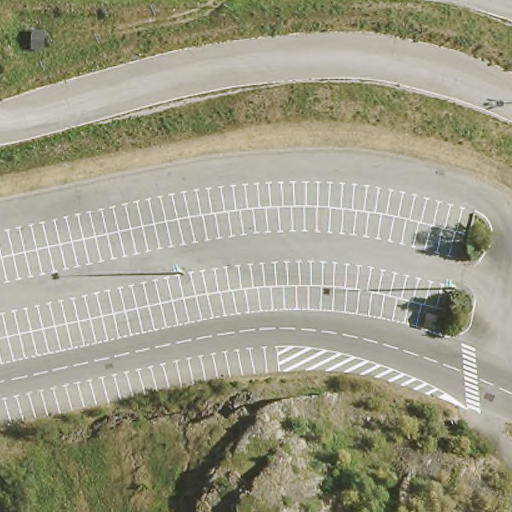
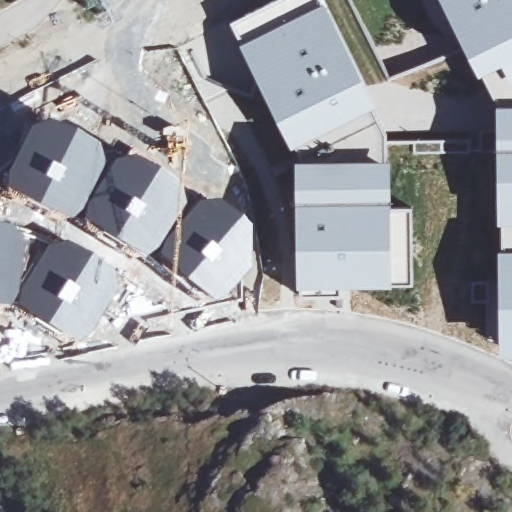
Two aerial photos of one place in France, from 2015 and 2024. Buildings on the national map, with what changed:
new [(325,0),(345,36),(377,105),(290,146),(252,70),(229,20),(270,0),(325,0)]
new [(320,0),(364,96),(466,43),(444,0),(512,0),(512,349),(487,338),(489,281),(411,282),(367,285),(367,272),(340,272),(337,292),(300,293),(300,166),(309,167),(309,150),(300,154),(232,21),(277,0),(320,0)]
new [(27,126),(47,120),(71,129),(52,165),(45,161),(37,176),(44,180),(32,205),(0,187),(0,185),(4,170),(27,126)]
new [(44,180),(37,176),(45,161),(52,165),(71,129),(95,143),(103,163),(72,218),(70,222),(32,205),(44,180)]
new [(103,163),(110,159),(125,155),(129,151),(133,154),(155,167),(170,177),(169,197),(162,235),(141,259),(72,218),(103,163)]
new [(392,156),(392,205),(412,205),(414,284),(345,285),(297,287),(295,157),(392,156)]
new [(172,245),(172,235),(172,230),(175,225),(202,193),(235,216),(207,247),(200,242),(190,256),(174,275),(171,274),(172,245)]
new [(194,259),(190,256),(200,242),(207,247),(235,216),(246,227),(245,271),(210,303),(177,276),(194,259)]
new [(25,235),(27,236),(25,245),(20,273),(10,307),(0,306),(0,224),(25,232),(25,235)]
new [(20,273),(24,275),(55,236),(87,255),(109,267),(120,282),(75,345),(19,310),(10,307),(20,273)]

